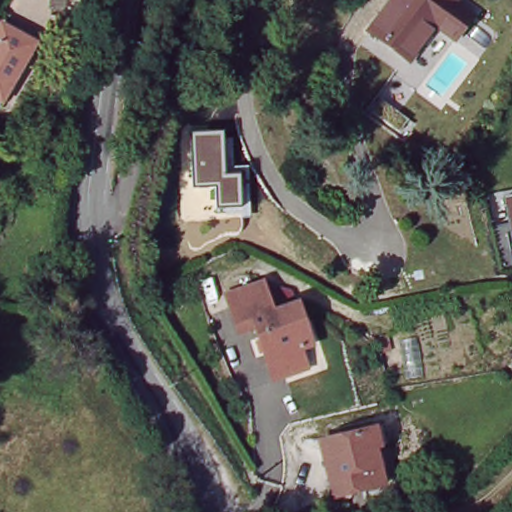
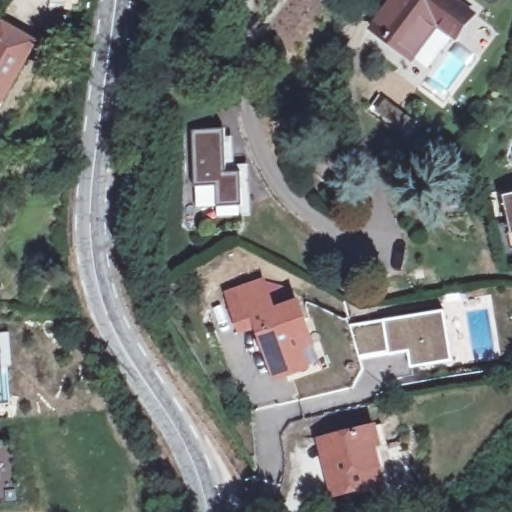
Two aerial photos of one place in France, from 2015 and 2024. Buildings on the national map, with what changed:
unchanged [(390,0),(452,0),(451,1),(475,20),(458,40),(439,26),(401,65),(361,34),(390,0)]
unchanged [(469,9),(476,0),(478,0),(493,11),(486,21),(469,9)]
unchanged [(9,112),(0,108),(0,45),(8,31),(43,53),(9,112)]
unchanged [(222,132),(224,172),(239,172),(241,207),(219,207),(217,186),(194,186),(192,132),(222,132)]
unchanged [(506,198),(512,196),(512,229),(506,198)]
unchanged [(239,324),(227,289),(266,277),(272,294),(297,287),(310,328),(298,332),(305,352),(271,363),(256,319),(239,324)]
new [(442,311),(451,359),(412,367),(409,349),(358,356),(350,324),(442,311)]
demolished [(376,337),(387,335),(390,349),(379,352),(376,337)]
unchanged [(372,427),(376,446),(371,447),(379,485),(328,496),(324,476),(330,475),(322,438),(372,427)]
new [(1,491),(0,492),(0,480),(1,491)]

